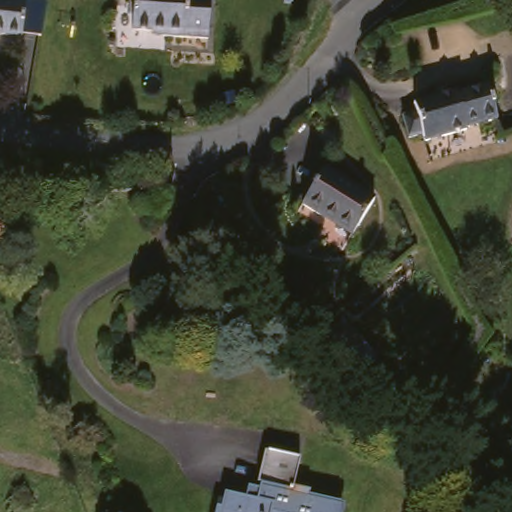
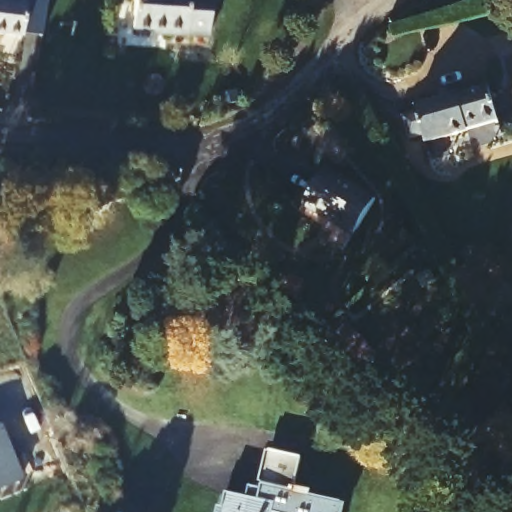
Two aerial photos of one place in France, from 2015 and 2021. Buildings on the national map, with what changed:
unchanged [(0,36),(0,0),(18,0),(14,38),(0,36)]
unchanged [(204,37),(159,34),(159,31),(128,29),(130,0),(206,0),(204,37)]
unchanged [(467,130),(468,133),(427,144),(424,136),(410,139),(404,118),(419,114),(417,105),(459,95),(459,96),(478,91),(486,125),(467,130)]
unchanged [(318,213),(317,216),(299,205),(322,169),(369,199),(349,232),(318,213)]
new [(1,426),(6,441),(12,438),(18,452),(11,454),(21,479),(0,488),(0,427),(1,426)]
unchanged [(252,505),(264,455),(296,463),(289,496),(337,508),(336,512),(217,512),(221,498),(252,505)]

